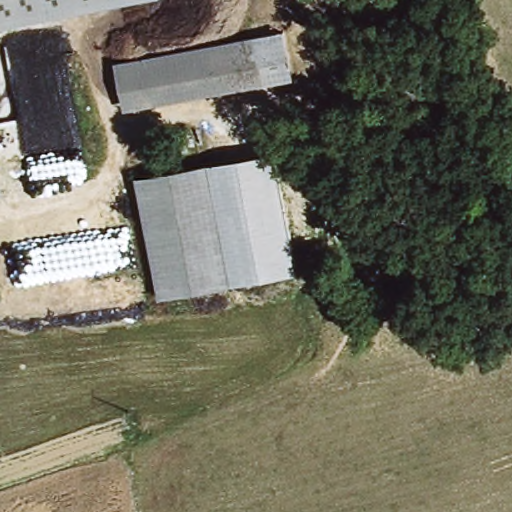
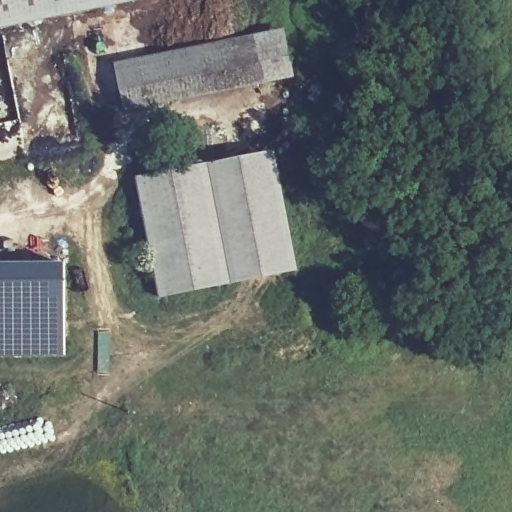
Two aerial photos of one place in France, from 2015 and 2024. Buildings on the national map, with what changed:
unchanged [(0,29),(0,0),(127,0),(0,29)]
unchanged [(284,29),(296,80),(125,110),(114,64),(284,29)]
unchanged [(274,154),(300,269),(238,282),(212,165),(274,154)]
unchanged [(212,165),(238,282),(154,300),(129,183),(212,165)]
new [(65,358),(0,358),(0,263),(64,262),(65,358)]

